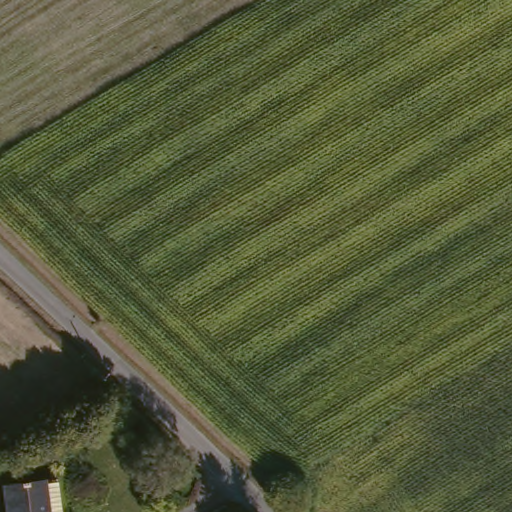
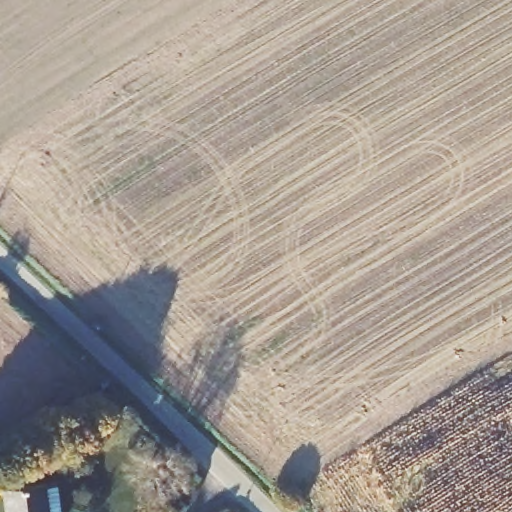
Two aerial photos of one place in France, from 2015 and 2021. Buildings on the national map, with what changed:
unchanged [(51,486),(64,484),(68,512),(13,512),(10,488),(51,483),(51,486)]

